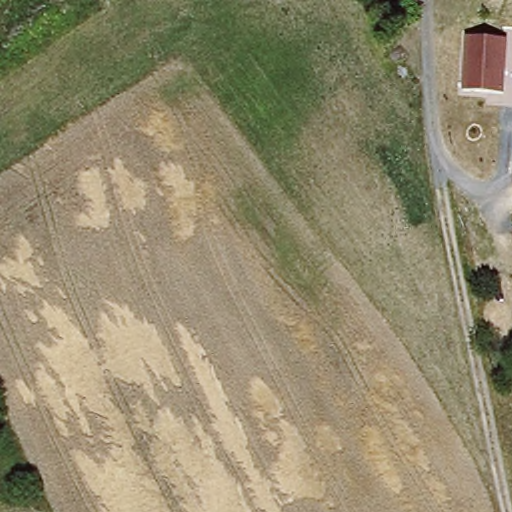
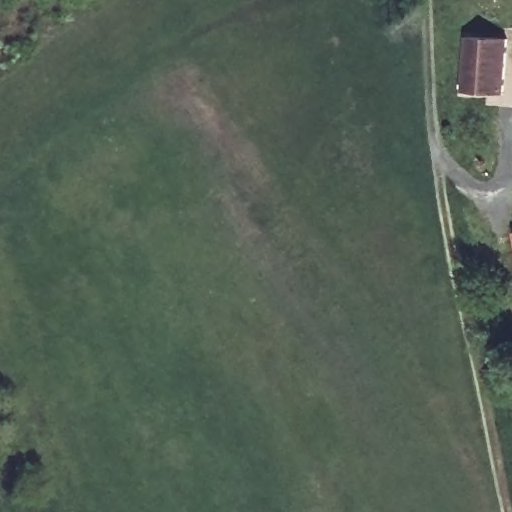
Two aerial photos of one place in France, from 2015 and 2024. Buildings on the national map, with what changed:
unchanged [(464,36),(506,39),(503,94),(460,91),(464,36)]

